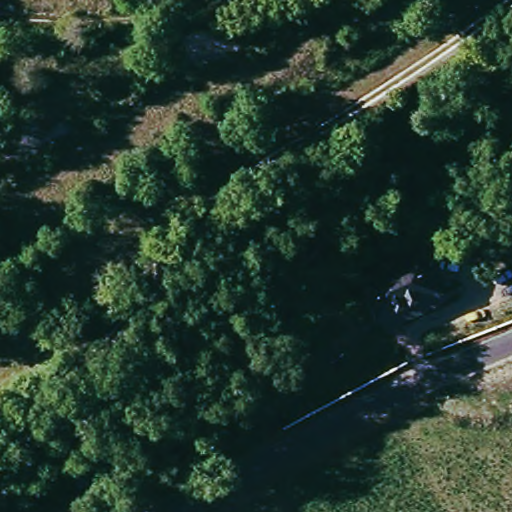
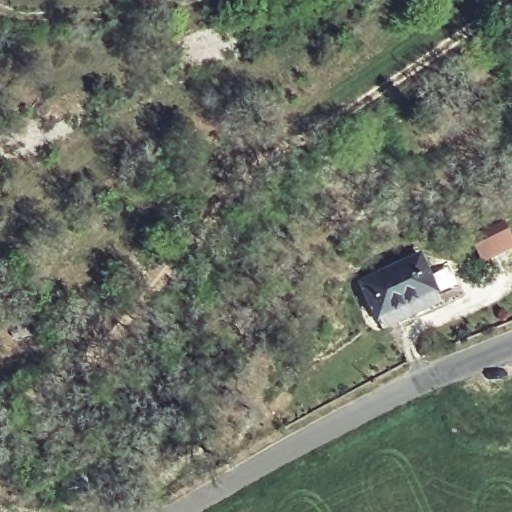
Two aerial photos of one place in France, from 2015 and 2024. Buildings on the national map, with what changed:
new [(506,225),(512,238),(512,249),(485,262),(474,241),(506,225)]
unchanged [(365,280),(424,255),(440,293),(382,317),(365,280)]

